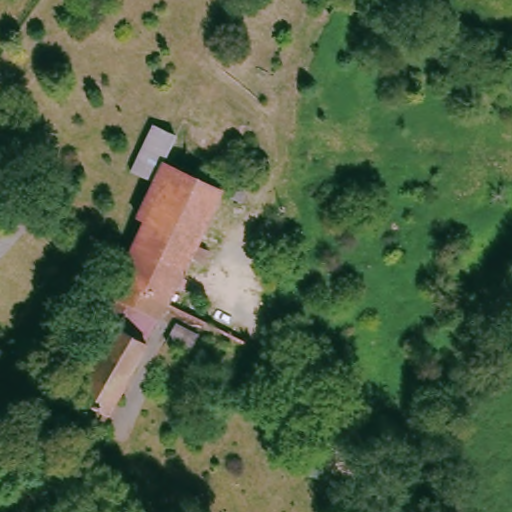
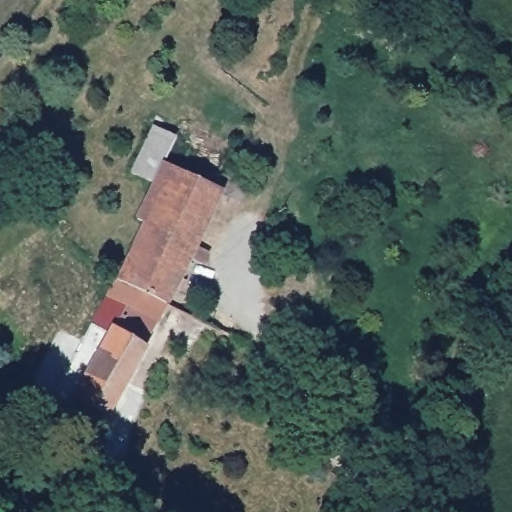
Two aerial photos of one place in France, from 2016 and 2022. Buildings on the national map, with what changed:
unchanged [(137,210),(139,205),(114,191),(138,145),(166,160),(174,165),(220,191),(194,243),(208,250),(201,261),(189,255),(166,301),(164,303),(116,271),(146,215),(137,210)]
unchanged [(20,207),(34,221),(0,256),(0,216),(7,221),(20,207)]
unchanged [(72,354),(116,271),(164,303),(103,413),(75,396),(79,388),(60,376),(72,354)]

